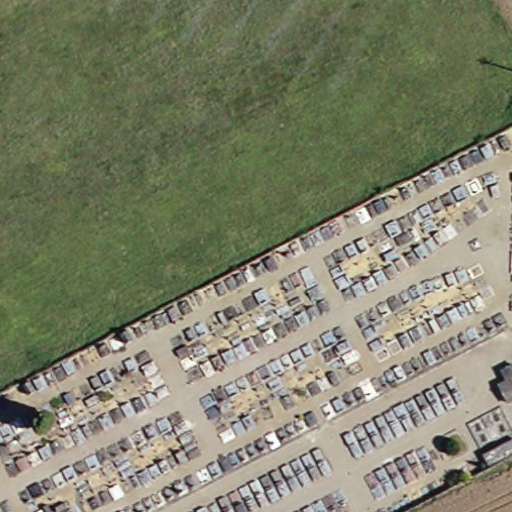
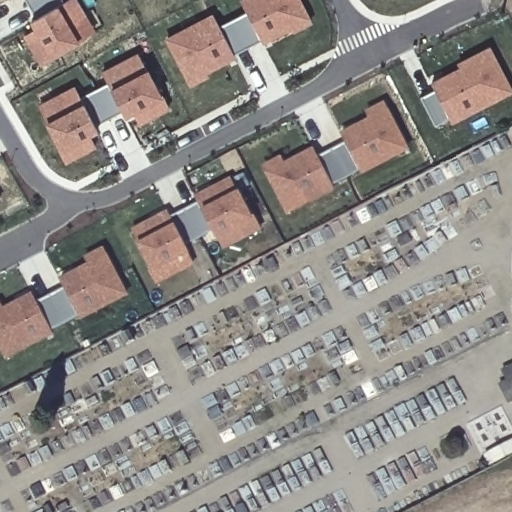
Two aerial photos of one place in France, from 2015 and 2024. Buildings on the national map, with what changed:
new [(52,58),(32,22),(36,20),(25,0),(61,0),(64,4),(70,0),(74,0),(82,15),(94,33),(87,36),(52,58)]
new [(205,72),(207,76),(189,84),(166,39),(212,16),(218,26),(247,11),(241,0),(298,0),(309,22),(291,31),(290,27),(261,42),(260,40),(230,56),(231,57),(205,72)]
new [(54,59),(42,66),(25,37),(36,30),(54,59)]
new [(451,118),(436,126),(421,97),(436,90),(432,84),(461,69),(459,65),(490,48),(512,91),(492,102),(453,122),(451,118)]
new [(58,98),(76,89),(80,98),(108,84),(103,74),(120,65),(139,56),(142,61),(161,97),(125,116),(122,112),(95,127),(97,131),(61,149),(42,113),(40,108),(58,98)]
new [(139,123),(132,112),(161,97),(162,96),(169,108),(139,123)]
new [(363,170),(334,185),(332,180),(303,194),(307,202),(290,211),(267,166),(284,157),(287,164),(316,149),(320,157),(348,142),(344,134),(372,119),(369,112),(387,103),(410,148),(393,158),(365,172),(363,170)]
new [(89,135),(95,147),(65,162),(59,151),(62,150),(89,135)]
new [(134,230),(169,212),(171,217),(199,203),(196,198),(232,180),(252,219),(256,217),(262,229),(224,248),(218,237),(215,230),(187,244),(191,252),(197,263),(159,282),(153,271),(155,271),(134,230)]
new [(303,194),(332,180),(336,188),(307,202),(303,194)]
new [(52,332),(50,326),(22,341),(26,348),(8,358),(0,343),(0,304),(2,303),(5,310),(34,295),(38,303),(66,289),(62,281),(91,265),(87,259),(105,249),(128,295),(111,304),(82,318),(82,316),(52,332)]
new [(22,341),(50,326),(54,334),(26,348),(22,341)]

